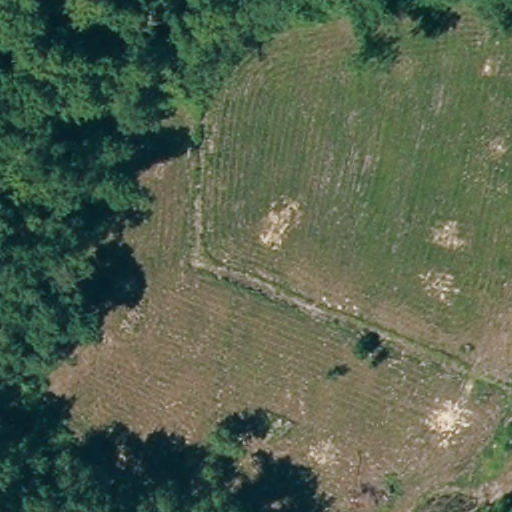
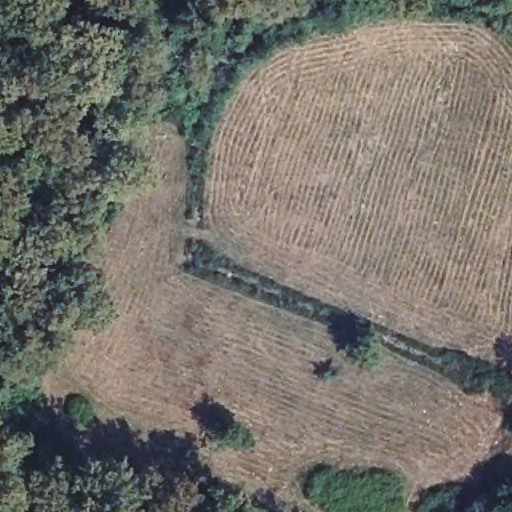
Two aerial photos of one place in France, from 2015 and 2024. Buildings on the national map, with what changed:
[]

